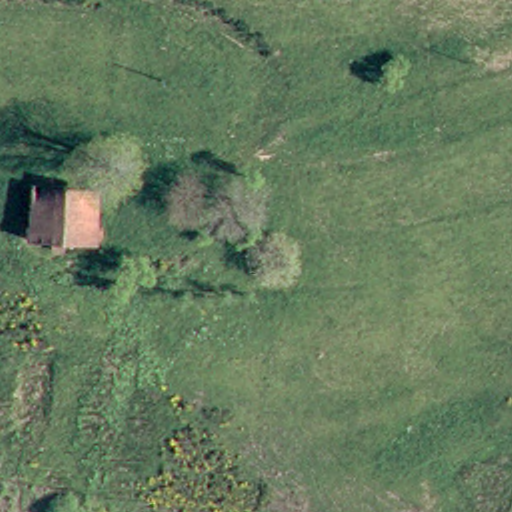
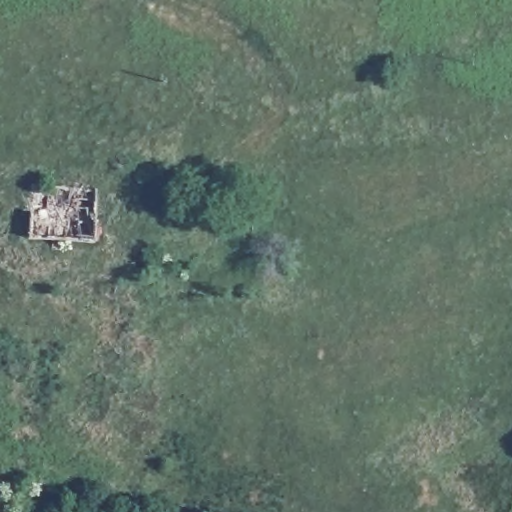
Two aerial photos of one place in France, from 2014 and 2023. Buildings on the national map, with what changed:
unchanged [(62,243),(59,255),(45,253),(46,241),(21,238),(30,181),(42,183),(99,193),(92,248),(62,243)]

